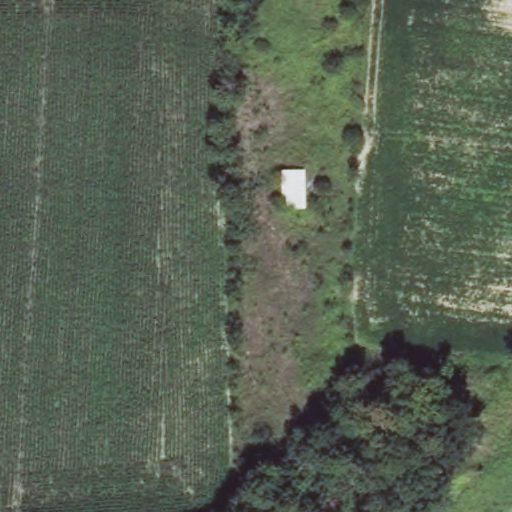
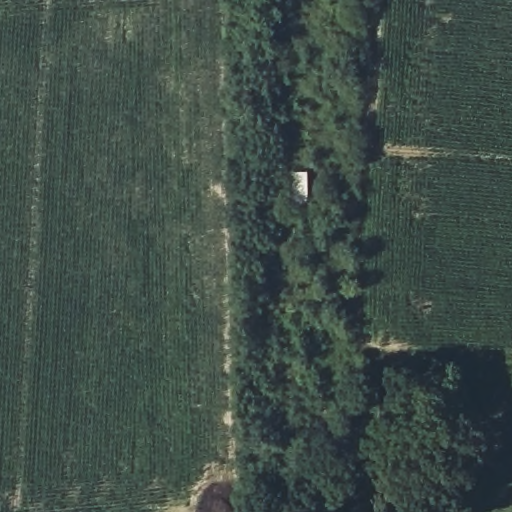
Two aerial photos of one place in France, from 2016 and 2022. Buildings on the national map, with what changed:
unchanged [(279,173),(305,172),(306,212),(280,212),(279,173)]

